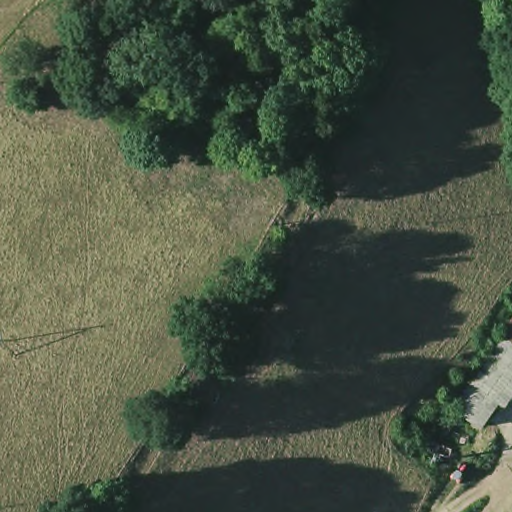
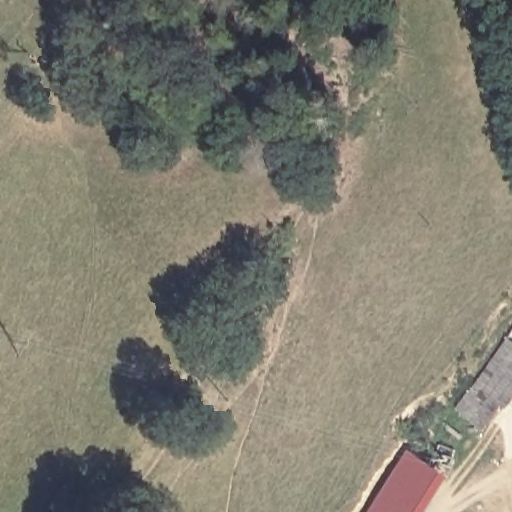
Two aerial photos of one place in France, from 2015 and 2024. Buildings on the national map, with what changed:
demolished [(512,355),(512,359),(510,358),(512,355)]
new [(435,512),(373,512),(413,451),(457,477),(435,512)]

